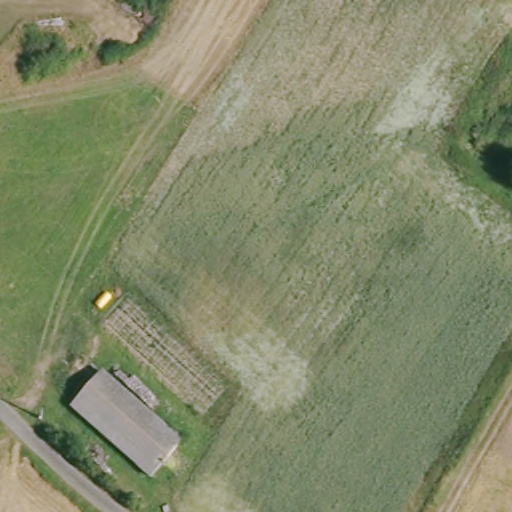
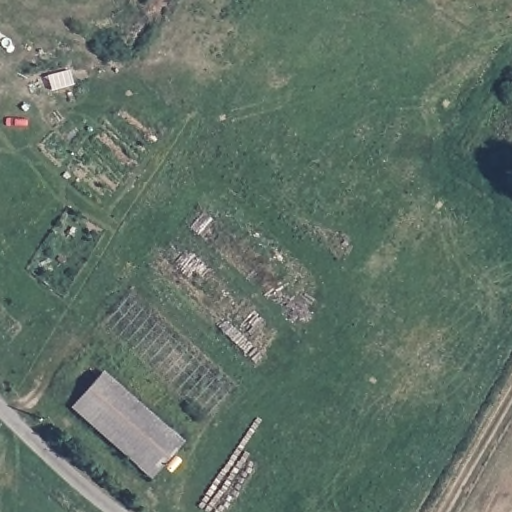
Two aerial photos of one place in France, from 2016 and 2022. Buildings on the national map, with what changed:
unchanged [(183,440),(153,475),(90,420),(81,429),(68,417),(103,372),(183,440)]

